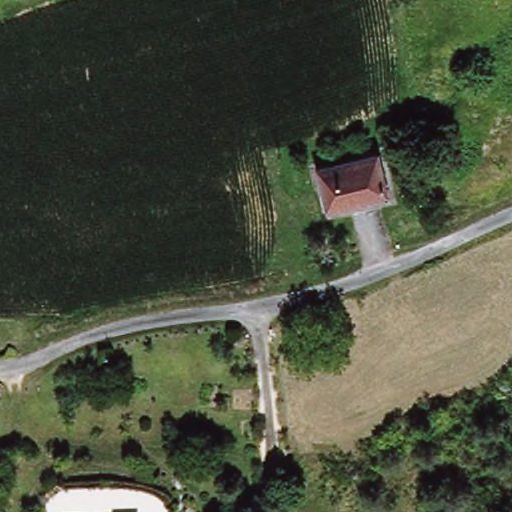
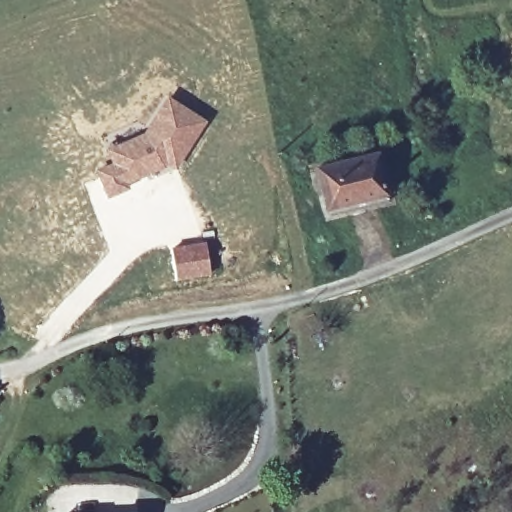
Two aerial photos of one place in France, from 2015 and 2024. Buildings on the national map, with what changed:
new [(110,160),(104,148),(143,130),(166,94),(208,121),(176,169),(173,166),(129,185),(130,188),(106,198),(94,167),(110,160)]
unchanged [(318,165),(373,156),(382,209),(328,216),(318,165)]
new [(206,241),(212,275),(178,280),(172,246),(206,241)]

